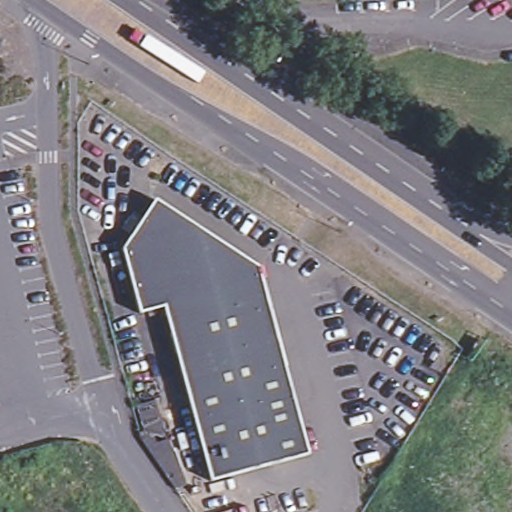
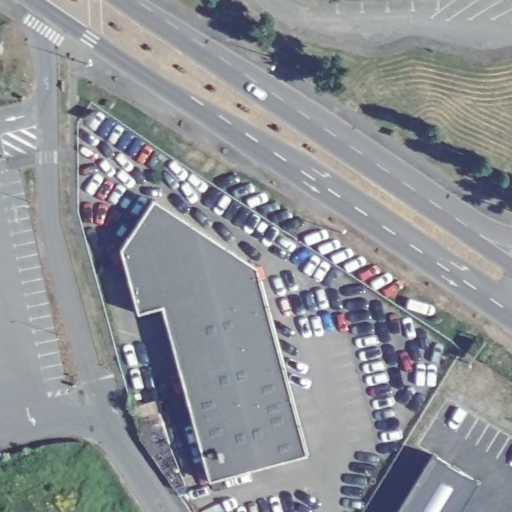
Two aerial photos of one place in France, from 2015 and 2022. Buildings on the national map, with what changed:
unchanged [(160,195),(262,263),(313,451),(215,477),(167,303),(143,310),(125,245),(160,195)]
new [(464,512),(398,512),(432,455),(480,483),(464,512)]

